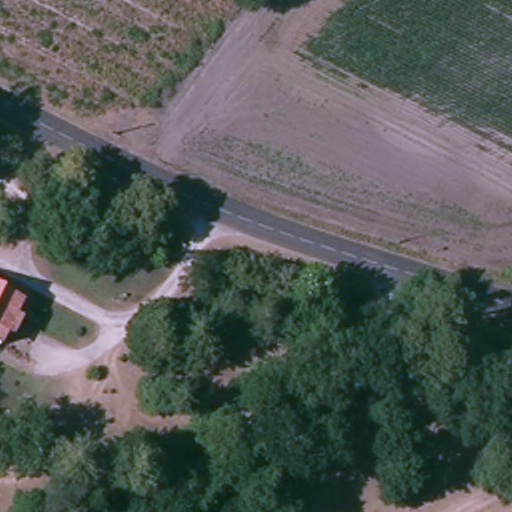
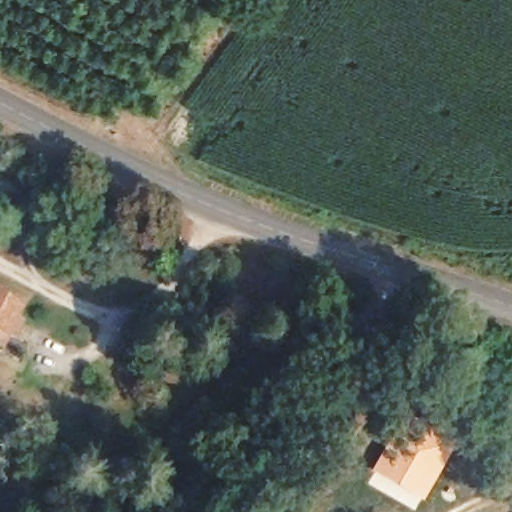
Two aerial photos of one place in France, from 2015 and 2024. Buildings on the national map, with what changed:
unchanged [(0,353),(0,302),(2,297),(23,308),(2,353),(0,353)]
new [(401,414),(454,441),(422,501),(378,478),(376,482),(379,484),(377,487),(367,482),(401,414)]

